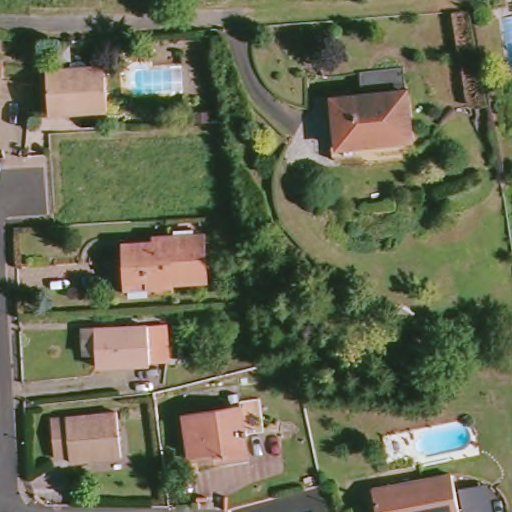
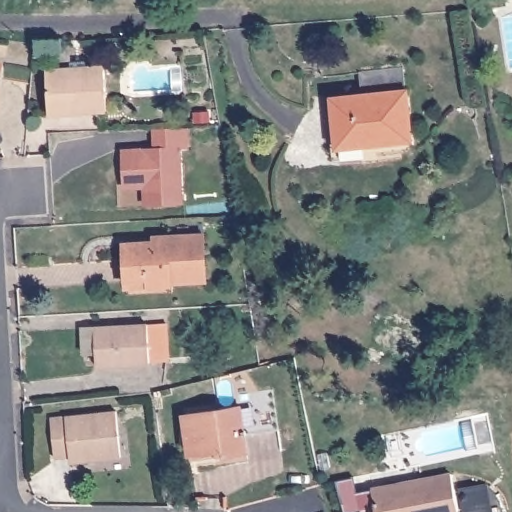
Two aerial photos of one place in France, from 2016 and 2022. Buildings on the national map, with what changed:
unchanged [(49,108),(47,71),(70,69),(70,64),(86,63),(86,69),(104,68),(107,110),(83,112),(50,114),(49,108)]
unchanged [(397,68),(405,140),(331,148),(326,99),(356,96),(353,72),(397,68)]
unchanged [(197,113),(210,112),(210,121),(198,121),(197,113)]
new [(144,204),(143,188),(123,189),(122,149),(152,148),(152,128),(188,126),(188,148),(182,148),(184,203),(144,204)]
unchanged [(124,244),(157,243),(157,247),(169,245),(168,237),(202,234),(205,280),(172,282),(172,284),(172,292),(127,295),(127,279),(124,244)]
unchanged [(167,361),(148,362),(148,364),(97,367),(96,353),(83,354),(82,328),(95,328),(165,324),(167,361)]
unchanged [(184,453),(179,416),(235,408),(234,403),(254,400),(258,431),(239,434),(241,444),(242,452),(185,461),(184,453)]
unchanged [(70,457),(55,458),(50,419),(65,418),(116,412),(121,457),(95,459),(70,463),(70,457)]
unchanged [(366,484),(445,469),(453,512),(371,512),(366,484)]

